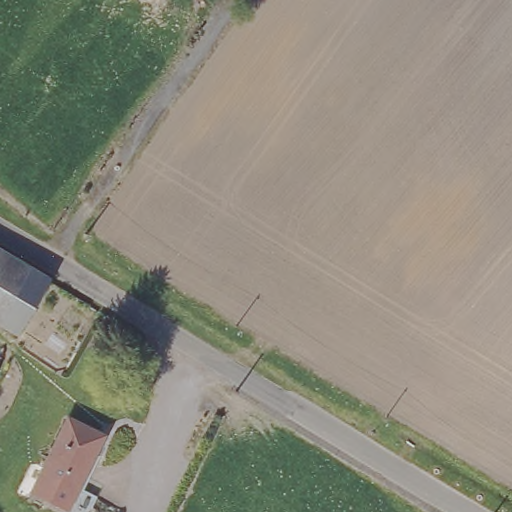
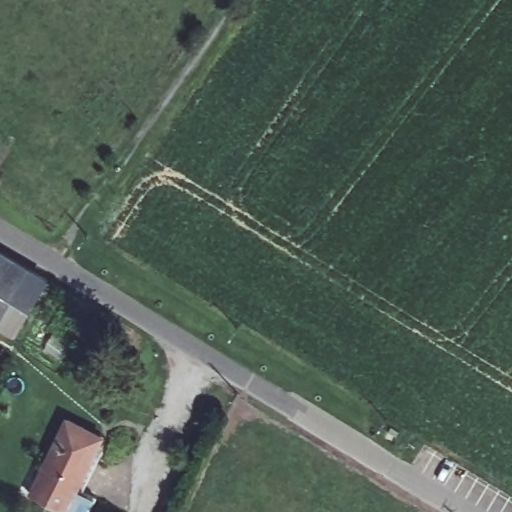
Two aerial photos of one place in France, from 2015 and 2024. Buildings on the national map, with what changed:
unchanged [(25,335),(0,320),(0,248),(57,281),(25,335)]
unchanged [(102,315),(97,323),(88,317),(92,308),(102,315)]
unchanged [(4,370),(0,379),(0,369),(4,370)]
unchanged [(67,415),(107,435),(72,510),(30,492),(67,415)]

